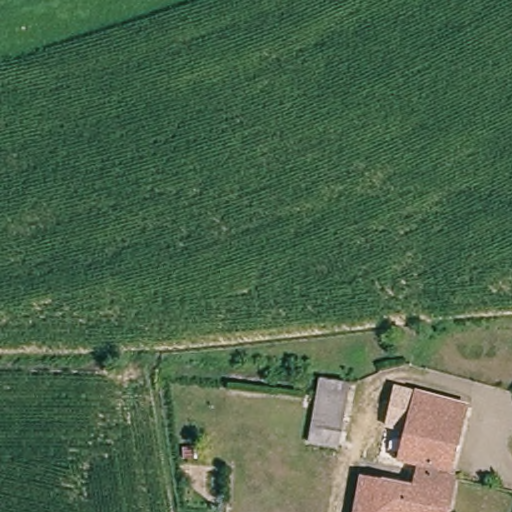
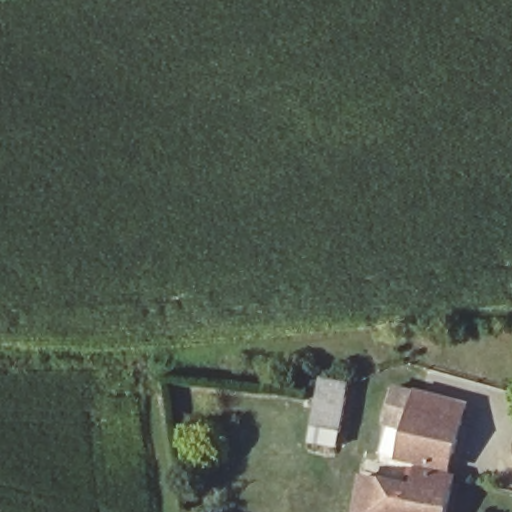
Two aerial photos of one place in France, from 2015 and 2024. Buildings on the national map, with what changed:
unchanged [(323,384),(347,389),(334,451),(310,446),(323,384)]
unchanged [(468,407),(453,476),(459,479),(451,512),(361,512),(367,479),(416,487),(422,468),(405,462),(424,397),(468,407)]

